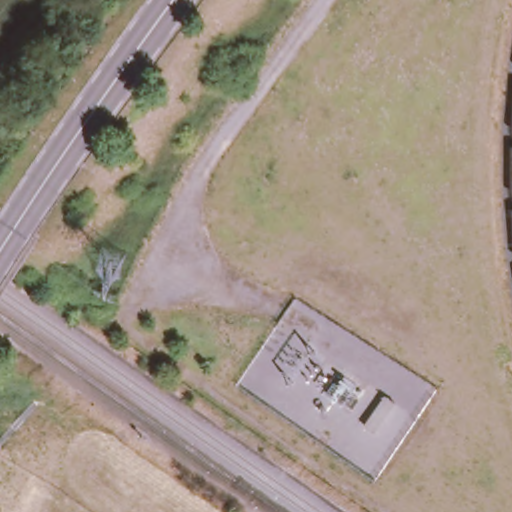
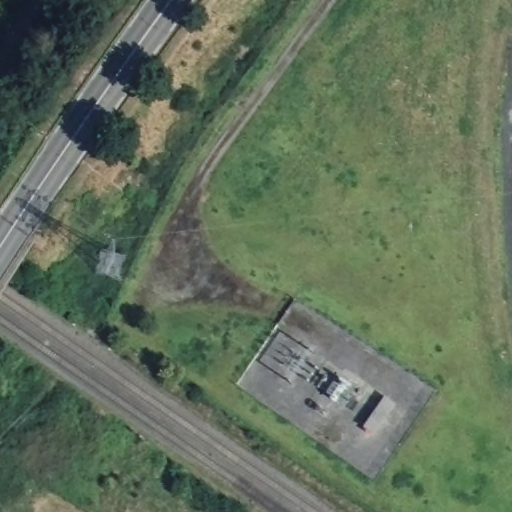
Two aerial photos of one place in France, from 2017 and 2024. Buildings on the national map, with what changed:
unchanged [(385,397),(395,404),(374,433),(363,426),(385,397)]

